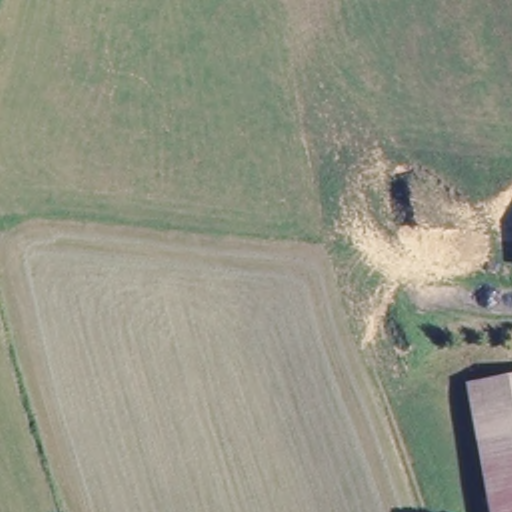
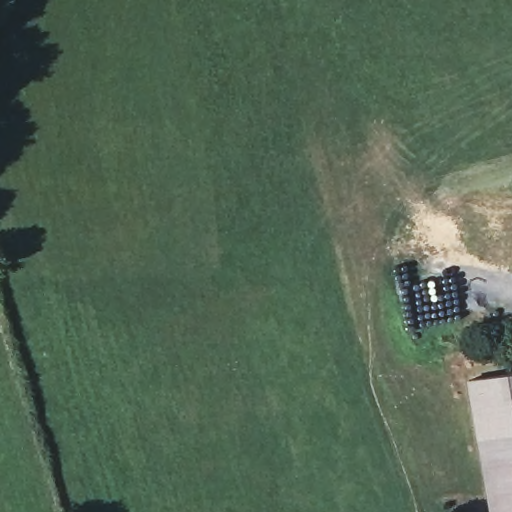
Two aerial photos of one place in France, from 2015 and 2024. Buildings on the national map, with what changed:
unchanged [(467,382),(512,373),(512,434),(478,441),(467,382)]
unchanged [(512,434),(512,512),(491,512),(478,441),(512,434)]

